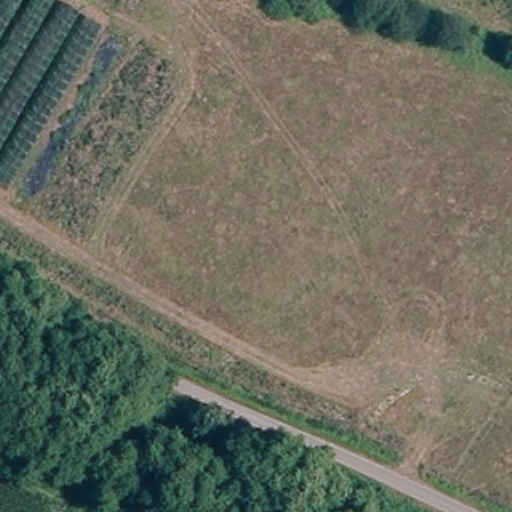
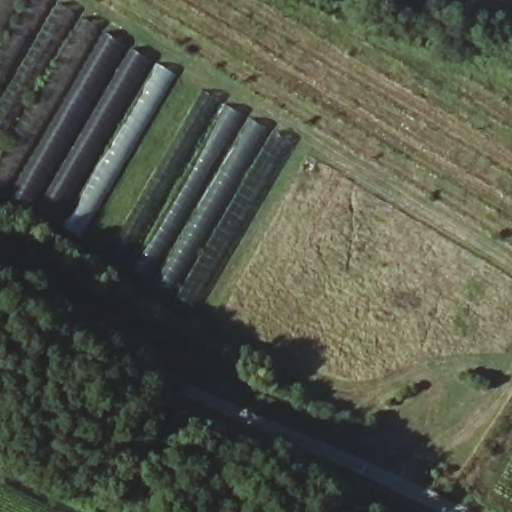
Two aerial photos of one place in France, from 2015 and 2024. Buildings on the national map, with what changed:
new [(176,73),(82,237),(0,189),(0,0),(51,0),(176,73)]
new [(292,143),(199,310),(109,256),(205,91),(292,143)]

